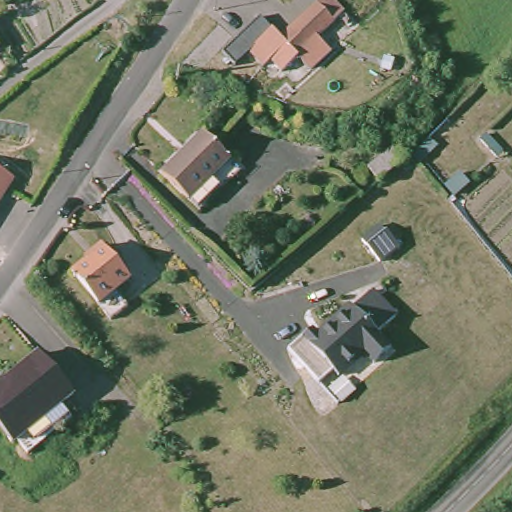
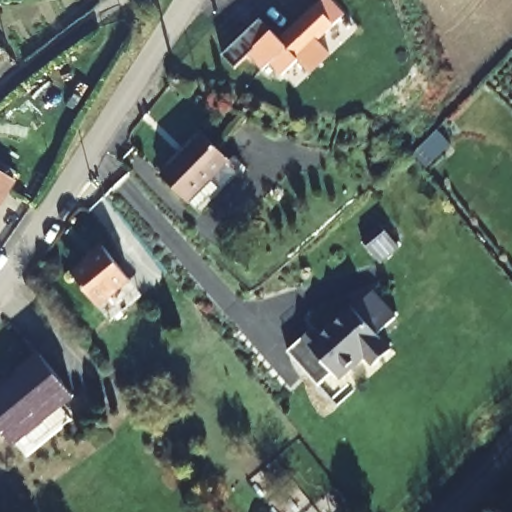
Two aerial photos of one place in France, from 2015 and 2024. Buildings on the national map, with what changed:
unchanged [(315,0),(339,0),(324,12),(315,0)]
unchanged [(365,11),(361,0),(377,0),(379,6),(365,11)]
unchanged [(274,55),(319,13),(336,30),(291,73),(292,74),(277,89),(271,83),(266,87),(259,81),(257,84),(242,69),(265,47),(274,55)]
unchanged [(3,46),(0,49),(0,42),(3,46)]
unchanged [(503,153),(499,156),(483,140),(478,144),(473,138),(482,130),(503,153)]
unchanged [(195,209),(186,202),(159,175),(199,134),(226,160),(208,179),(216,187),(195,209)]
unchanged [(379,181),(366,167),(393,145),(406,158),(379,181)]
unchanged [(13,178),(0,200),(0,170),(13,178)]
unchanged [(110,321),(98,305),(71,273),(95,254),(93,252),(101,245),(129,279),(114,292),(128,307),(110,321)]
unchanged [(302,337),(308,343),(349,306),(389,349),(373,364),(364,354),(338,377),(332,371),(318,384),(287,351),(302,337)]
unchanged [(48,419),(35,431),(28,430),(23,424),(19,427),(9,435),(0,423),(0,373),(35,344),(69,385),(50,400),(59,410),(48,419)]

